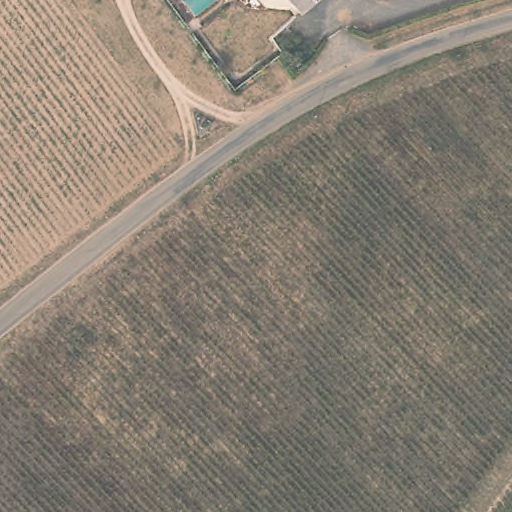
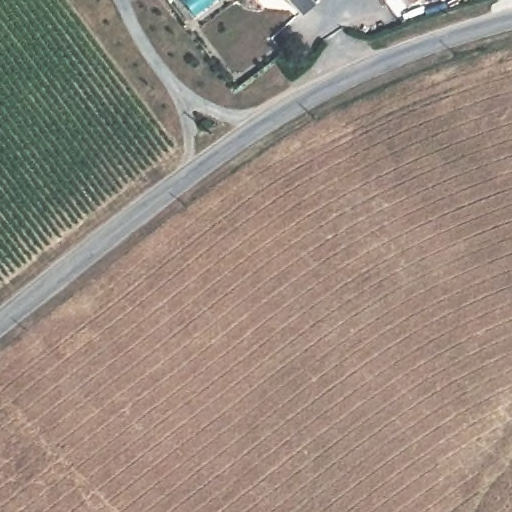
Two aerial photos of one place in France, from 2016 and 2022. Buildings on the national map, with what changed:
unchanged [(289,0),(312,0),(299,12),(289,0)]
unchanged [(100,281),(99,279),(99,276),(102,273),(105,274),(107,275),(107,278),(106,280),(104,282),(103,282),(100,281)]

